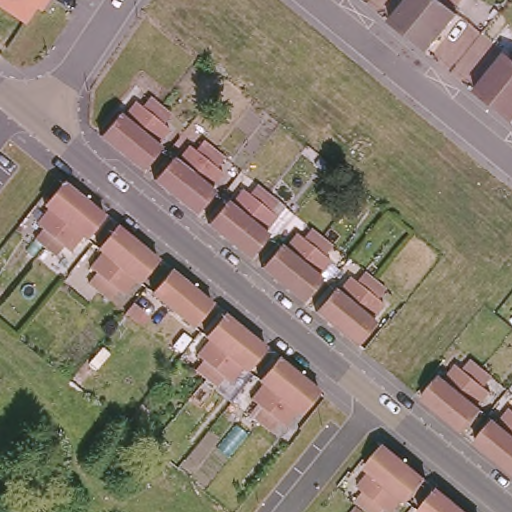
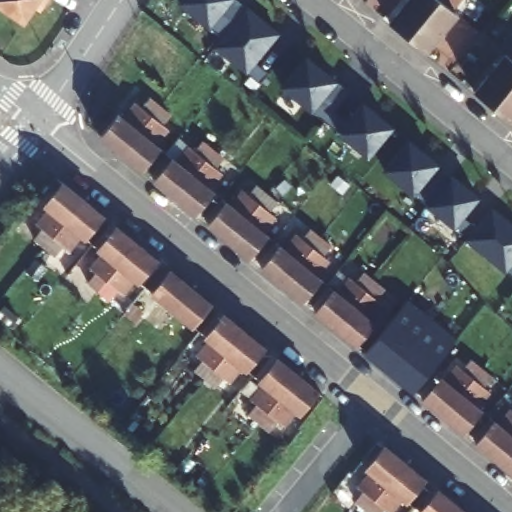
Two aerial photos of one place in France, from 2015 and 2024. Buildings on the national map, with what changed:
unchanged [(23,17),(0,1),(0,0),(35,0),(23,17)]
new [(181,0),(237,0),(246,7),(223,37),(209,26),(209,27),(179,2),(181,0)]
unchanged [(409,35),(389,18),(404,0),(438,0),(409,35)]
unchanged [(409,35),(438,0),(459,0),(454,7),(458,10),(426,48),(409,35)]
new [(223,37),(246,7),(279,34),(254,63),(268,75),(261,83),(215,47),(223,37)]
unchanged [(511,117),(494,104),(474,88),(506,50),(512,55),(512,54),(512,116),(511,117)]
new [(326,121),(312,110),(311,111),(282,87),(306,57),(319,69),(321,67),(336,81),(336,82),(349,92),(334,112),(346,123),(364,102),(379,116),(378,117),(392,128),(368,157),(339,132),(326,121)]
unchanged [(116,151),(95,134),(114,110),(117,112),(129,97),(136,102),(143,92),(155,102),(116,151)]
unchanged [(165,110),(158,120),(163,125),(151,141),(156,144),(138,169),(126,160),(116,151),(155,102),(165,110)]
new [(408,141),(422,152),(423,151),(436,162),(412,192),(384,170),(408,141)]
unchanged [(171,201),(162,194),(148,182),(167,159),(171,162),(183,146),(189,151),(198,142),(209,151),(171,201)]
unchanged [(171,201),(209,151),(219,160),(211,170),(218,174),(205,190),(209,193),(191,217),(171,201)]
new [(463,216),(473,225),(462,235),(452,227),(422,204),(426,200),(414,190),(433,166),(447,177),(454,170),(480,196),(463,216)]
unchanged [(50,239),(40,231),(48,221),(41,216),(54,200),(50,197),(68,174),(89,192),(50,239)]
unchanged [(224,245),(204,229),(204,228),(223,204),(226,207),(239,192),(245,197),(253,187),(263,196),(224,245)]
unchanged [(110,209),(91,231),(88,227),(74,243),(68,237),(60,247),(50,239),(89,192),(110,209)]
unchanged [(274,205),(266,215),(273,220),(261,235),(264,238),(246,261),(224,245),(263,196),(274,205)]
new [(506,270),(465,237),(493,206),(512,222),(512,275),(506,270)]
unchanged [(99,288),(89,280),(97,271),(90,265),(103,250),(99,246),(117,224),(138,241),(99,288)]
unchanged [(268,280),(256,271),(274,247),(278,250),(291,234),(296,239),(304,230),(316,239),(277,288),(268,280)]
unchanged [(277,288),(316,239),(326,247),(319,257),(324,262),(312,277),(316,281),(299,306),(277,288)]
unchanged [(158,257),(140,280),(136,277),(123,292),(116,287),(109,297),(99,288),(138,241),(158,257)]
unchanged [(195,325),(173,307),(153,291),(171,268),(191,284),(213,302),(195,325)]
unchanged [(336,327),(314,307),(333,286),(336,288),(349,273),(355,278),(363,268),(374,277),(336,327)]
unchanged [(385,287),(377,296),(383,301),(371,317),(375,320),(356,344),(344,334),(343,333),(336,327),(374,277),(385,287)]
new [(409,389),(364,352),(409,297),(457,338),(409,389)]
unchanged [(207,376),(196,368),(204,358),(198,353),(211,337),(206,334),(225,312),(246,328),(207,376)]
unchanged [(266,346),(248,368),(244,365),(231,380),(224,375),(216,384),(207,376),(246,328),(266,346)]
unchanged [(260,415),(250,407),(258,397),(251,392),(264,376),(260,373),(278,351),(299,367),(260,415)]
unchanged [(442,414),(421,395),(439,373),(443,376),(456,361),(462,366),(470,356),(481,366),(442,414)]
unchanged [(491,373),(483,383),(489,388),(476,403),(480,406),(462,430),(449,420),(443,415),(442,414),(481,366),(491,373)]
unchanged [(320,384),(301,407),(297,403),(284,419),(278,413),(270,423),(260,415),(299,367),(320,384)]
unchanged [(490,457),(479,448),(477,447),(469,441),(488,417),(492,421),(504,405),(511,410),(512,408),(512,430),(490,457)]
unchanged [(512,475),(503,468),(499,465),(490,457),(512,430),(512,474),(512,475)]
unchanged [(368,502),(358,495),(365,485),(359,480),(371,464),(368,461),(386,438),(407,455),(368,502)]
unchanged [(427,472),(409,495),(404,492),(392,507),(385,502),(377,511),(368,502),(407,455),(427,472)]
unchanged [(439,487),(460,505),(469,512),(424,512),(421,510),(439,487)]

